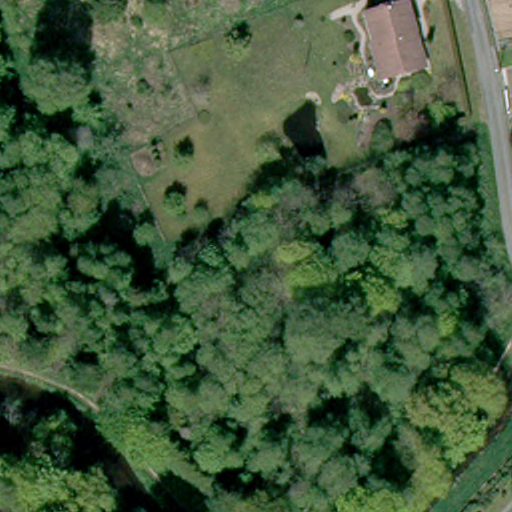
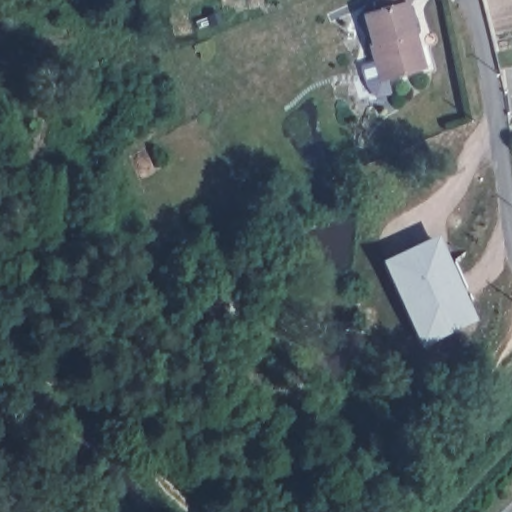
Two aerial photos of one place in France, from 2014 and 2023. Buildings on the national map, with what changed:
unchanged [(417,62),(381,73),(370,36),(374,35),(365,6),(376,3),(375,0),(404,0),(412,25),(423,60),(417,62)]
new [(470,315),(426,335),(389,256),(434,236),(470,315)]
new [(439,265),(457,302),(434,313),(416,275),(439,265)]

